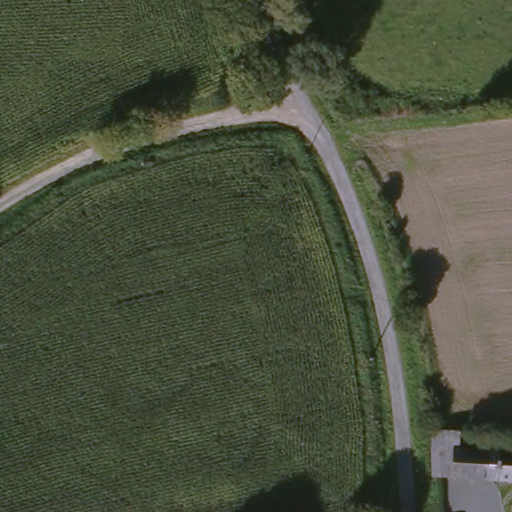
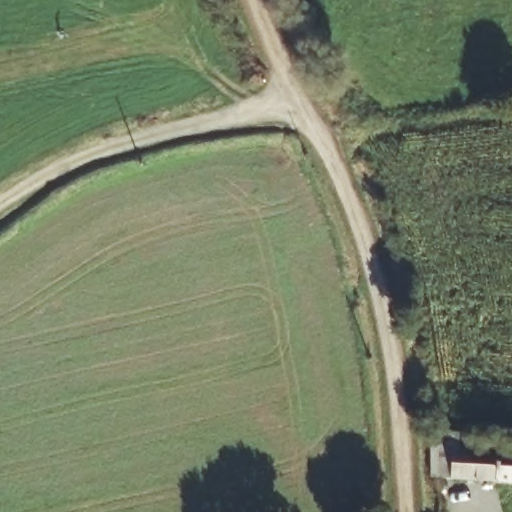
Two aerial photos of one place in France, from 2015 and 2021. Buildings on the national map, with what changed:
unchanged [(447,483),(447,437),(474,438),(474,454),(512,457),(512,488),(447,483)]

